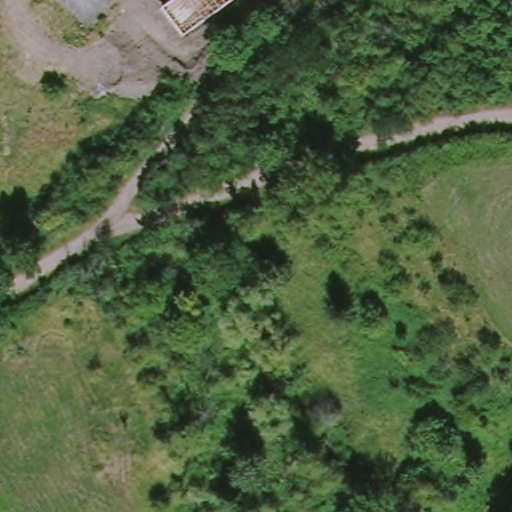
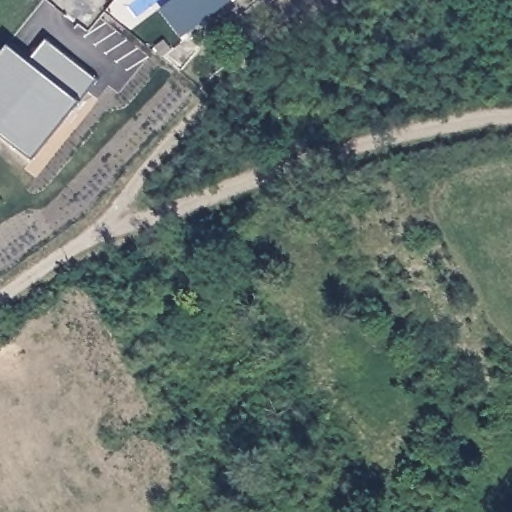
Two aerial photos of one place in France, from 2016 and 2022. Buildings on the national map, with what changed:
unchanged [(182,33),(161,5),(168,0),(234,0),(182,33)]
new [(10,40),(30,56),(47,36),(99,78),(35,158),(0,130),(0,53),(10,40)]
unchanged [(248,238),(254,247),(240,254),(235,245),(248,238)]

